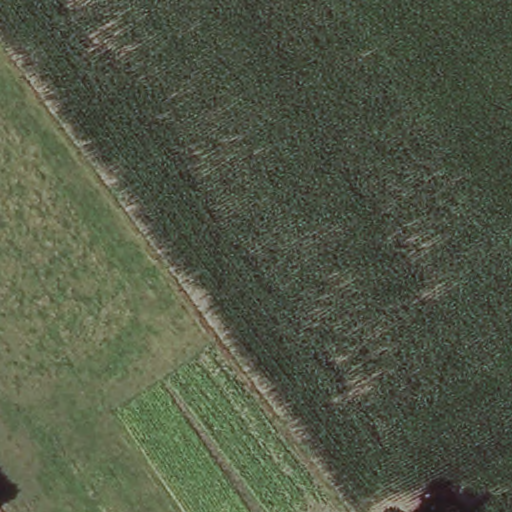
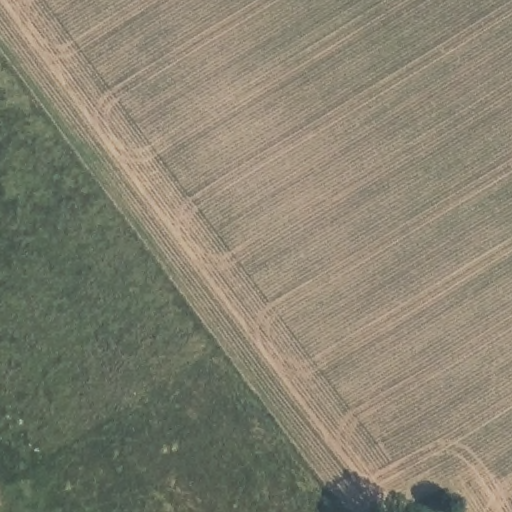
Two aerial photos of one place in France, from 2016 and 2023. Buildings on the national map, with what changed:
[]

